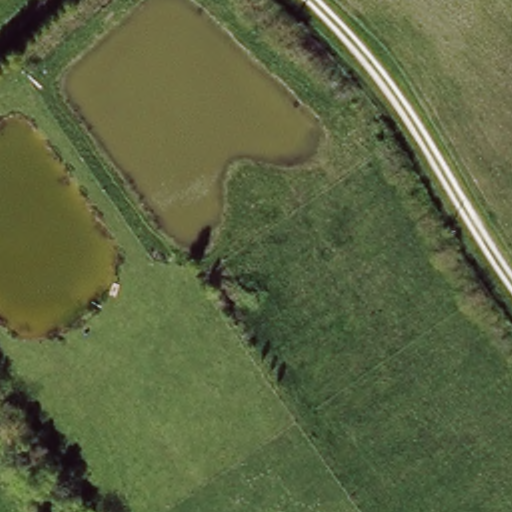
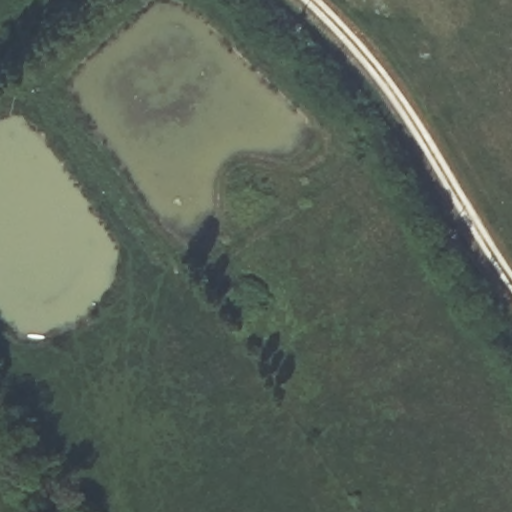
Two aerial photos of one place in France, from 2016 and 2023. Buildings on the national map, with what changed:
[]

